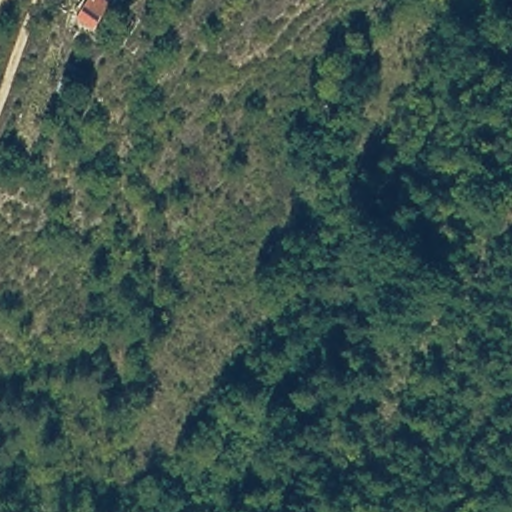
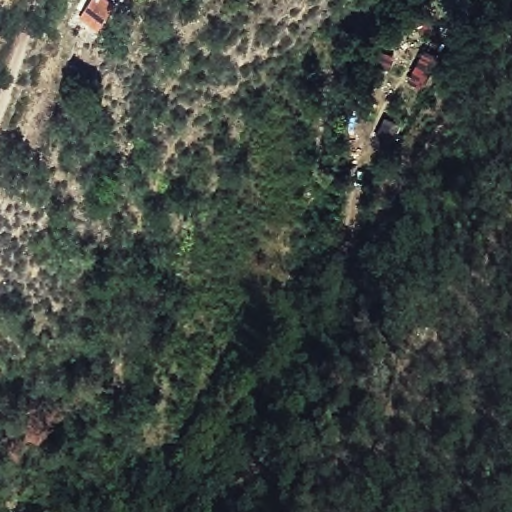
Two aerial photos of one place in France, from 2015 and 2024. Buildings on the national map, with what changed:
unchanged [(84,0),(115,0),(100,29),(77,13),(84,0)]

